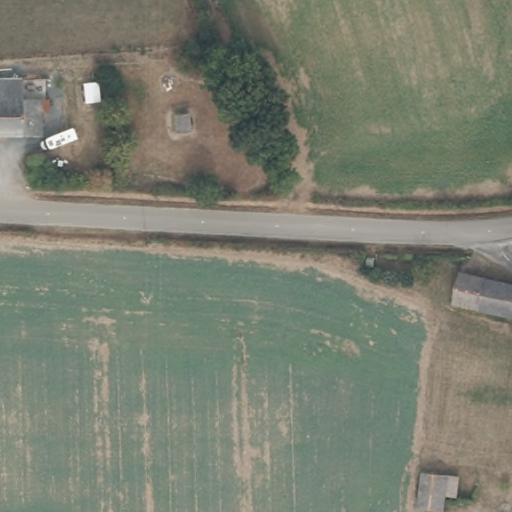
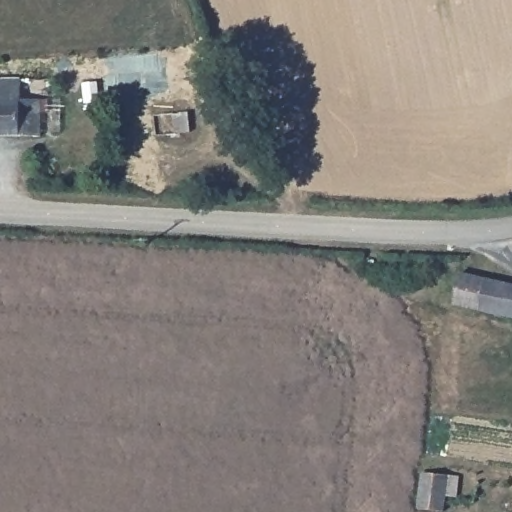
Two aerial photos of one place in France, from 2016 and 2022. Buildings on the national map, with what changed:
unchanged [(38,110),(37,135),(0,135),(0,78),(20,78),(20,97),(39,97),(47,99),(46,110),(38,110)]
unchanged [(28,175),(29,155),(37,155),(42,156),(41,177),(28,175)]
unchanged [(512,284),(512,314),(453,301),(460,271),(512,284)]
unchanged [(460,480),(458,500),(444,499),(442,512),(430,512),(418,511),(420,476),(460,480)]

